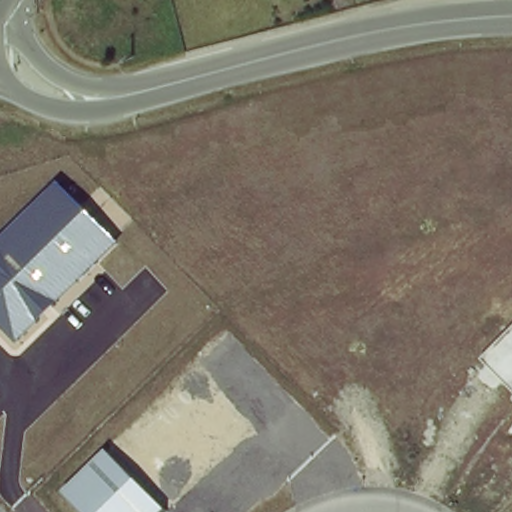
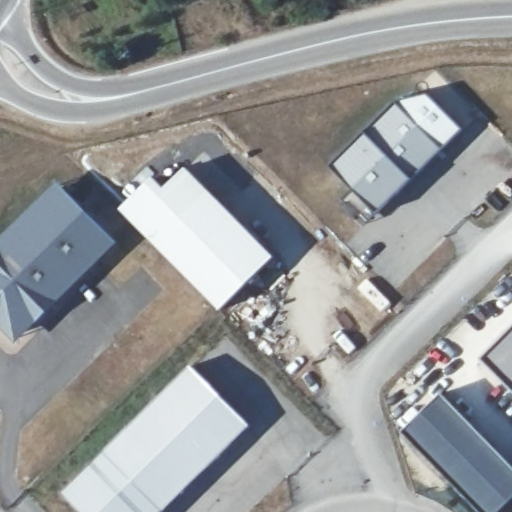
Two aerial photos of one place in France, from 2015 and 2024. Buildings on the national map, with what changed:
new [(403,99),(450,148),(401,194),(395,188),(377,206),(336,163),(403,99)]
new [(156,178),(167,190),(188,169),(276,257),(222,310),(123,210),(156,178)]
unchanged [(0,325),(0,239),(58,181),(119,244),(18,342),(0,325)]
unchanged [(512,327),(512,391),(479,358),(512,327)]
new [(192,365),(251,425),(166,508),(107,450),(192,365)]
new [(512,463),(512,501),(500,512),(482,512),(404,430),(442,391),(512,463)]
unchanged [(81,512),(62,492),(107,450),(166,508),(162,512),(81,512)]

